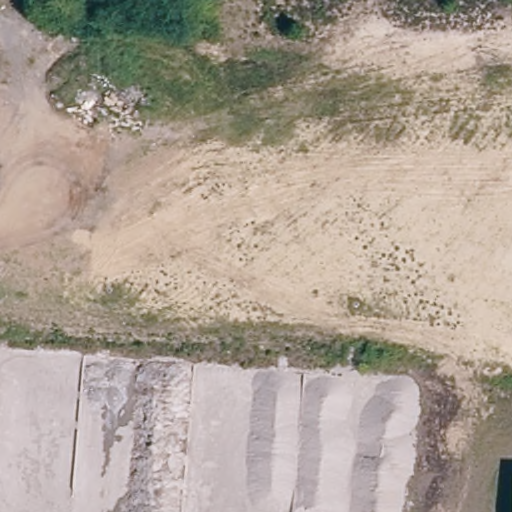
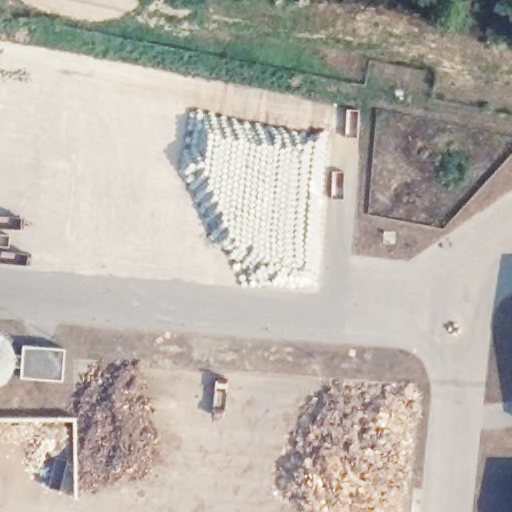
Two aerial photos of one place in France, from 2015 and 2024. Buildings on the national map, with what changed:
new [(22,344),(65,347),(63,381),(19,378),(22,344)]

